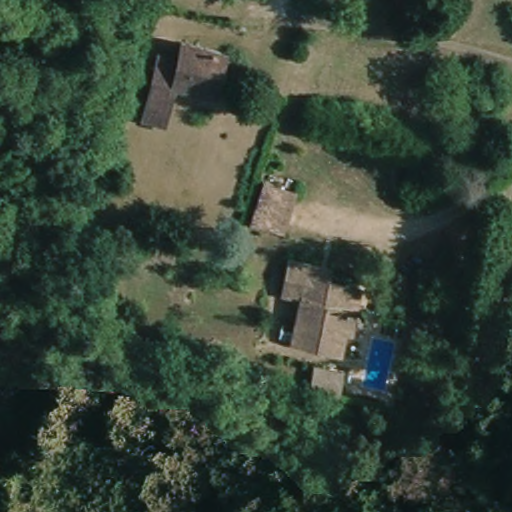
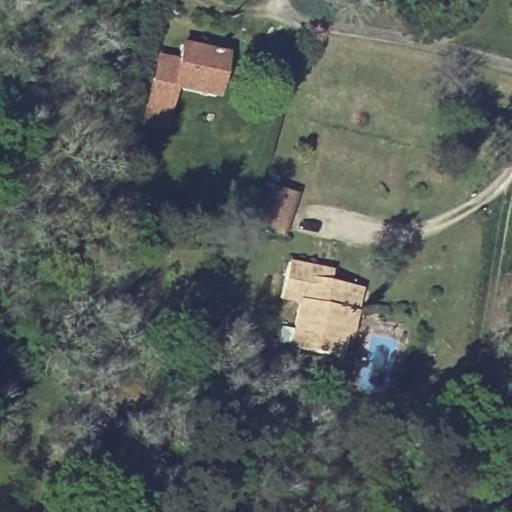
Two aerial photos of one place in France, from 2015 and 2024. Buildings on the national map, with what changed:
unchanged [(155,52),(176,57),(180,44),(222,53),(211,97),(170,88),(165,109),(141,102),(146,82),(155,52)]
unchanged [(246,223),(257,189),(290,199),(281,233),(246,223)]
unchanged [(314,264),(311,278),(345,285),(337,330),(341,331),(338,355),(291,348),(299,305),(282,301),(287,259),(314,264)]

